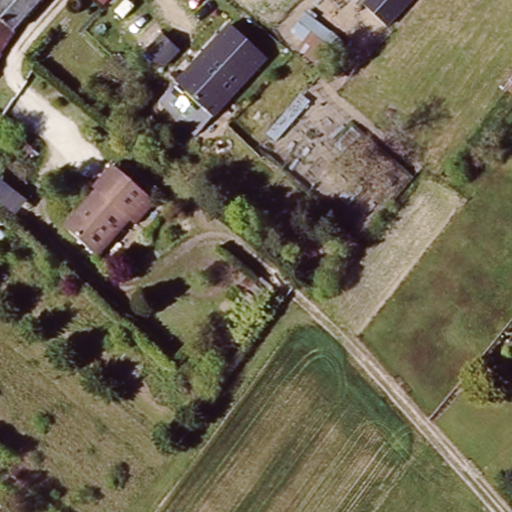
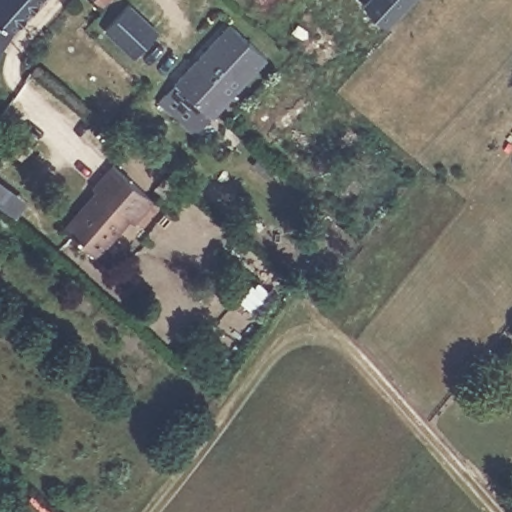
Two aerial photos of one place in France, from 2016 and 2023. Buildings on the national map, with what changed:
unchanged [(35,7),(13,37),(0,57),(0,0),(28,0),(35,7)]
unchanged [(35,7),(28,0),(42,0),(35,7)]
unchanged [(103,5),(97,0),(108,0),(103,5)]
unchanged [(418,6),(394,31),(366,5),(371,0),(424,0),(418,6)]
new [(127,3),(156,30),(133,56),(103,29),(127,3)]
unchanged [(215,115),(179,80),(234,23),(270,58),(215,115)]
unchanged [(296,27),(304,35),(298,42),(289,34),(296,27)]
unchanged [(197,134),(161,98),(166,93),(179,80),(215,115),(203,128),(197,134)]
unchanged [(98,194),(93,190),(115,166),(158,206),(136,229),(129,223),(95,260),(63,231),(98,194)]

